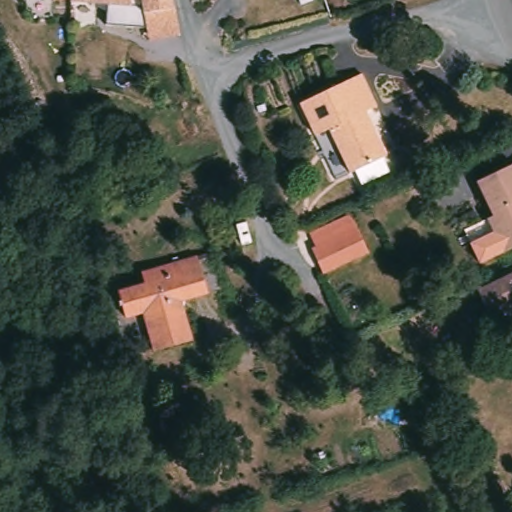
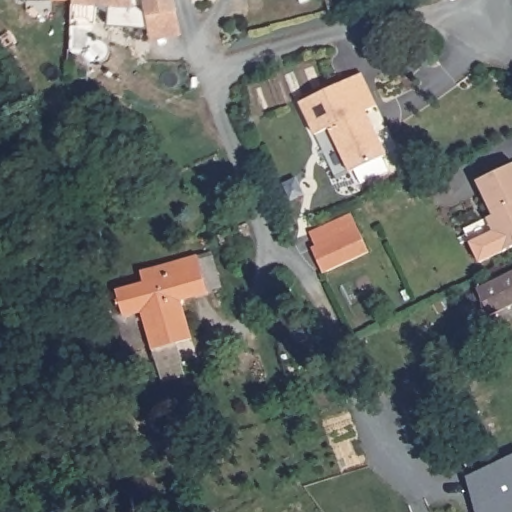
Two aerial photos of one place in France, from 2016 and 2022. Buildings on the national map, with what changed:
unchanged [(154,21),(142,21),(143,6),(112,4),(74,1),(74,0),(172,0),(173,6),(155,12),(154,21)]
unchanged [(148,69),(152,69),(164,70),(167,81),(153,85),(149,74),(148,69)]
unchanged [(363,73),(377,103),(363,109),(356,112),(371,144),(378,141),(384,153),(379,156),(387,173),(360,185),(353,168),(347,170),(327,125),(312,131),(299,99),(363,73)]
unchanged [(478,188),(512,171),(512,249),(480,265),(470,246),(495,235),(489,221),(493,218),(478,188)]
unchanged [(354,221),(365,245),(320,267),(309,243),(354,221)]
unchanged [(198,263),(215,258),(223,292),(207,296),(181,303),(191,341),(152,353),(142,314),(126,319),(118,294),(147,285),(144,273),(171,265),(197,258),(198,263)]
unchanged [(476,296),(512,279),(512,308),(488,320),(476,296)]
new [(512,512),(480,512),(483,508),(468,477),(512,455),(512,512)]

